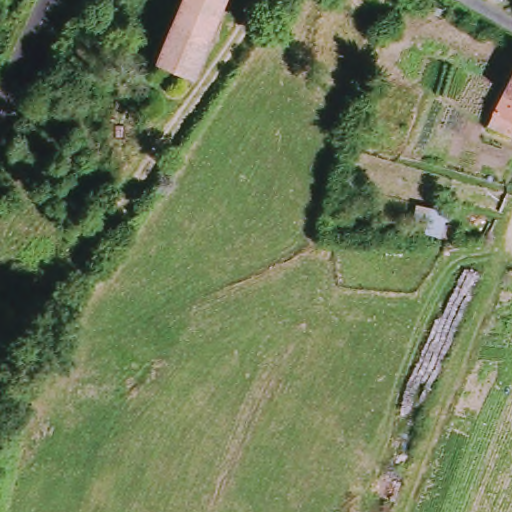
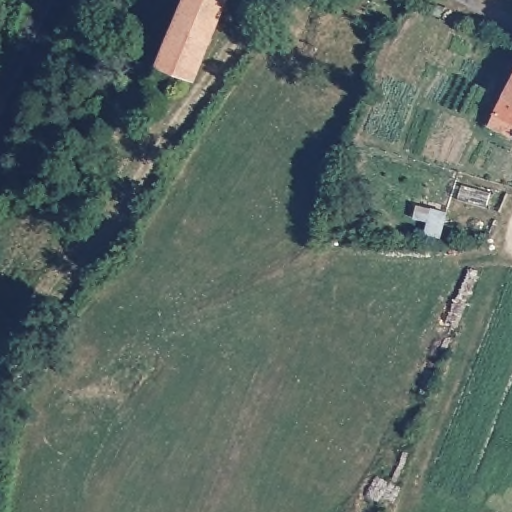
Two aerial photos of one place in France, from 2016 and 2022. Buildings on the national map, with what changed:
unchanged [(188,0),(230,0),(199,73),(164,59),(188,0)]
unchanged [(495,128),(512,91),(512,131),(495,128)]
unchanged [(455,227),(441,224),(447,202),(461,204),(455,227)]

